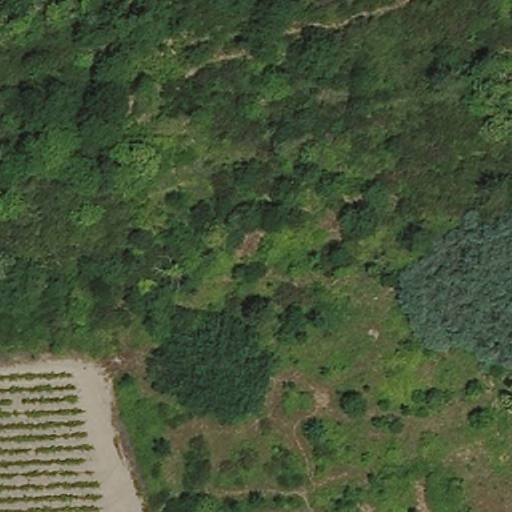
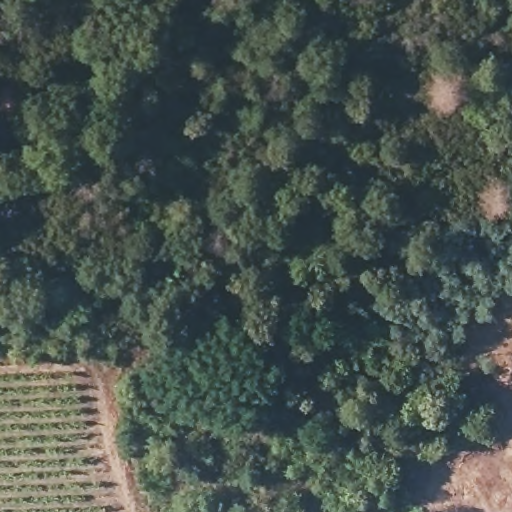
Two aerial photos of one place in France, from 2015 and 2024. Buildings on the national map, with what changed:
unchanged [(179,119),(162,123),(159,108),(175,104),(179,119)]
unchanged [(164,322),(182,317),(186,336),(169,340),(164,322)]

